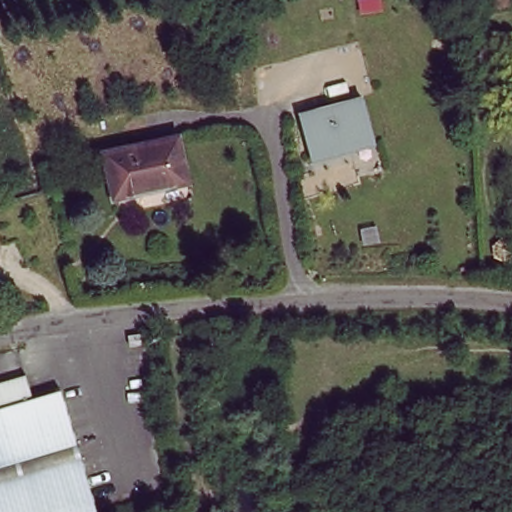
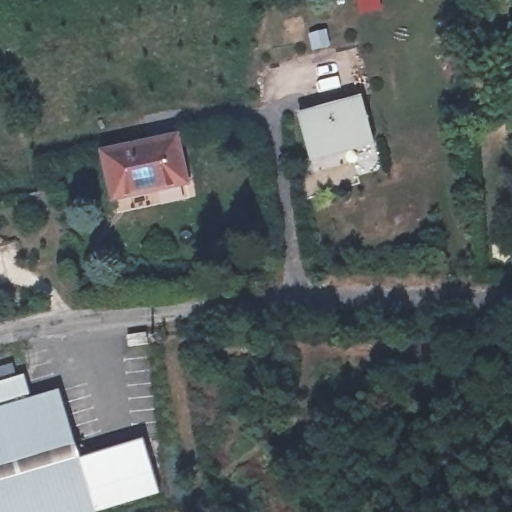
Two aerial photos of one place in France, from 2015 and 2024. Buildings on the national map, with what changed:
unchanged [(378,149),(313,169),(300,128),(364,110),(378,149)]
unchanged [(117,207),(105,164),(178,146),(191,189),(117,207)]
unchanged [(138,329),(141,341),(122,344),(120,331),(138,329)]
unchanged [(0,388),(23,381),(32,408),(60,399),(95,512),(0,512),(0,388)]
new [(158,494),(99,512),(96,512),(79,459),(142,442),(158,494)]

